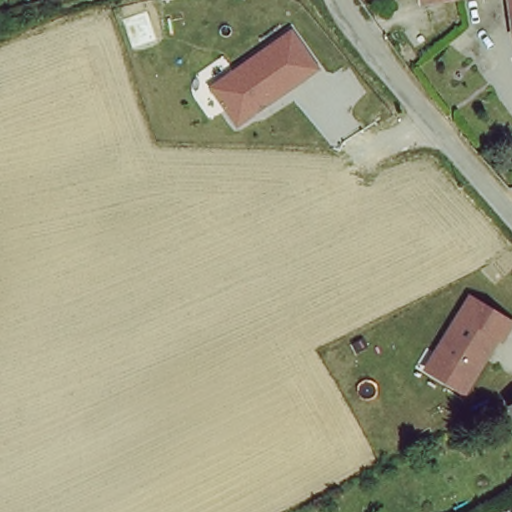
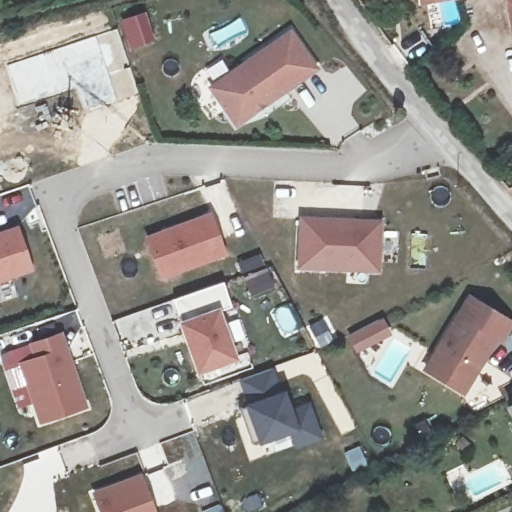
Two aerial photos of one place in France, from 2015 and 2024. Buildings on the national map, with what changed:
new [(417,0),(443,0),(418,4),(417,0)]
new [(505,0),(512,0),(512,34),(510,34),(505,0)]
unchanged [(292,27),(319,70),(237,128),(209,88),(292,27)]
new [(201,217),(216,258),(167,278),(152,237),(201,217)]
new [(309,228),(386,233),(383,280),(306,276),(309,228)]
new [(16,229),(30,269),(0,280),(0,234),(16,229)]
unchanged [(512,323),(512,324),(465,397),(420,373),(468,292),(512,323)]
new [(218,306),(238,359),(195,374),(177,320),(218,306)]
new [(62,331),(84,407),(41,421),(25,361),(31,359),(26,340),(62,331)]
new [(275,363),(288,403),(310,397),(320,437),(298,443),(295,433),(259,445),(236,376),(275,363)]
unchanged [(512,407),(512,411),(510,408),(512,407)]
new [(142,472),(157,512),(99,512),(92,491),(142,472)]

